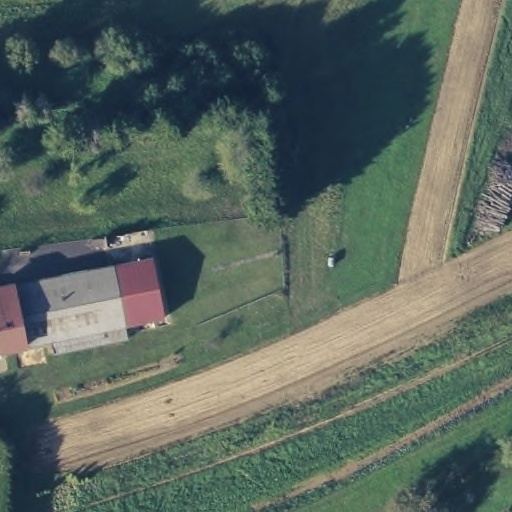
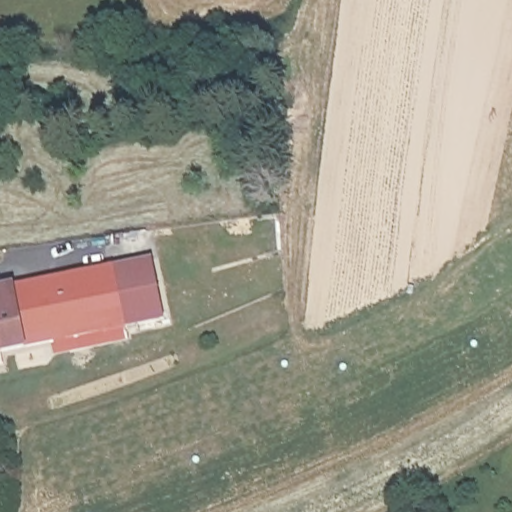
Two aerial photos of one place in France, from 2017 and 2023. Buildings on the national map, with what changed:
unchanged [(154,257),(167,319),(130,327),(117,264),(154,257)]
unchanged [(130,327),(132,336),(59,353),(55,335),(9,346),(0,305),(0,288),(117,264),(130,327)]
unchanged [(0,348),(0,305),(9,346),(0,348)]

